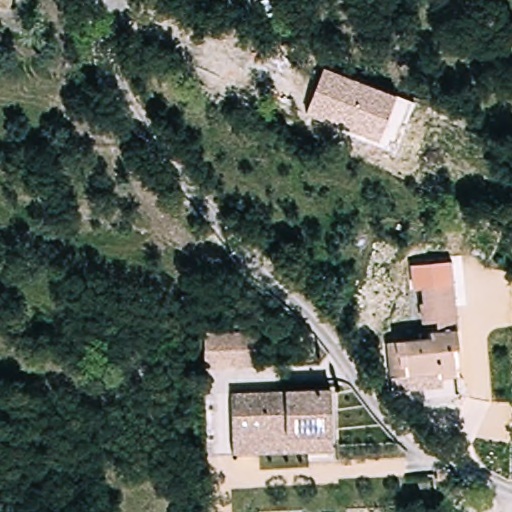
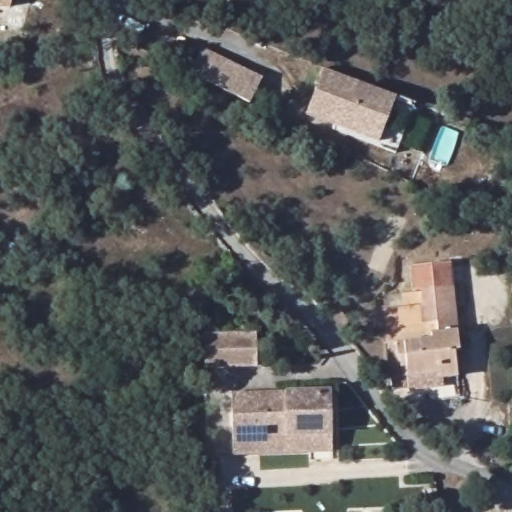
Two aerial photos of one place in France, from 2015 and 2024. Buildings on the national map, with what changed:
unchanged [(14,9),(0,6),(0,0),(16,0),(14,9)]
new [(263,78),(250,103),(189,74),(203,47),(263,78)]
unchanged [(414,103),(395,150),(377,141),(306,115),(322,68),(392,94),(414,103)]
unchanged [(464,351),(465,369),(449,370),(450,381),(394,383),(392,349),(440,345),(437,322),(420,322),(418,290),(417,273),(448,272),(450,287),(454,352),(464,351)]
unchanged [(258,366),(209,367),(208,335),(257,334),(258,366)]
unchanged [(292,453),(237,454),(236,394),(335,392),(336,434),(337,452),(292,453)]

